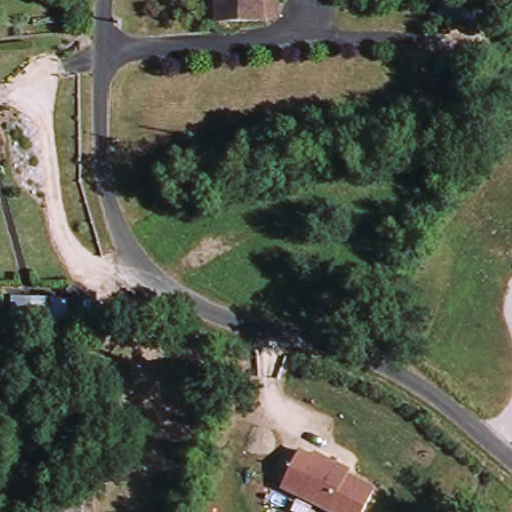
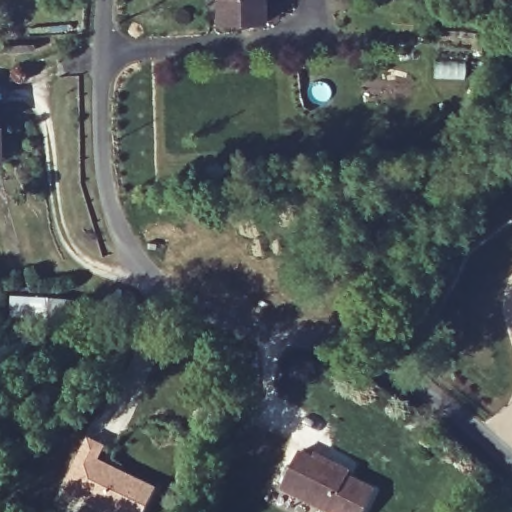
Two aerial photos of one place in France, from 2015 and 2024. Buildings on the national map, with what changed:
unchanged [(264,23),(218,24),(218,0),(264,0),(264,23)]
unchanged [(9,317),(11,298),(73,302),(70,324),(9,317)]
new [(96,462),(116,471),(156,489),(146,512),(109,512),(64,491),(87,440),(103,447),(96,462)]
unchanged [(340,512),(283,485),(301,447),(315,455),(317,450),(339,461),(352,467),(350,472),(377,486),(365,512),(340,512)]

